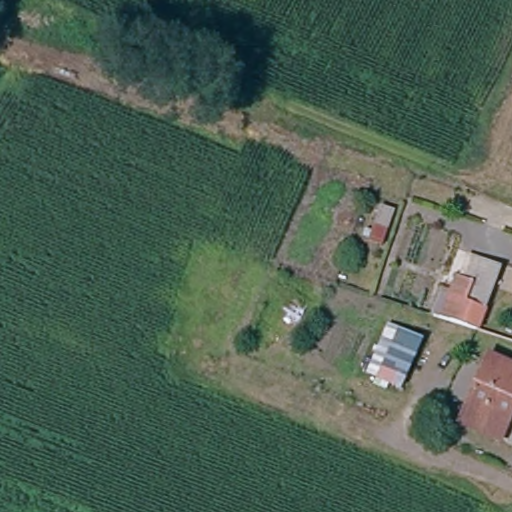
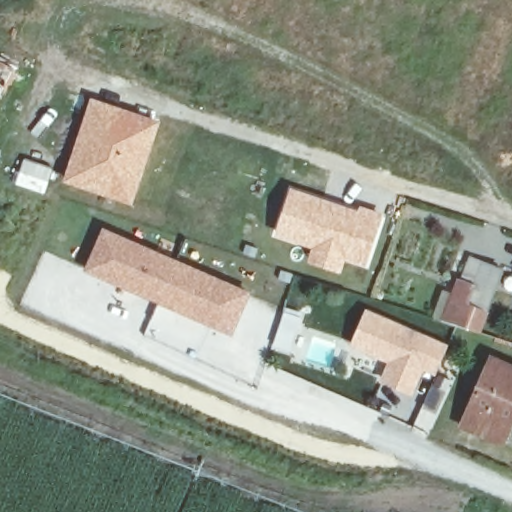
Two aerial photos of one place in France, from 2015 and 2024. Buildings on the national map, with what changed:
new [(92,100),(161,123),(134,204),(63,180),(92,100)]
new [(312,249),(275,236),(290,188),(358,210),(360,206),(384,214),(366,266),(346,260),(341,274),(307,264),(312,249)]
new [(251,292),(231,335),(83,271),(102,227),(251,292)]
unchanged [(440,300),(450,303),(469,258),(504,273),(480,331),(471,328),(433,316),(440,300)]
new [(449,344),(436,375),(423,370),(412,394),(379,381),(388,361),(349,345),(365,307),(449,344)]
demolished [(383,365),(372,362),(379,341),(389,345),(396,331),(425,342),(409,381),(378,377),(383,365)]
unchanged [(512,369),(512,404),(497,441),(458,423),(485,356),(512,369)]

